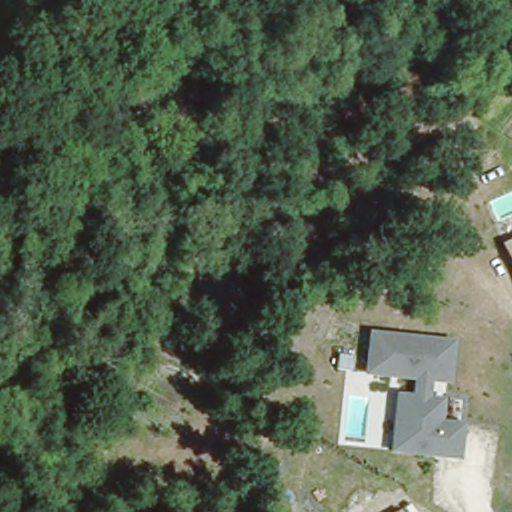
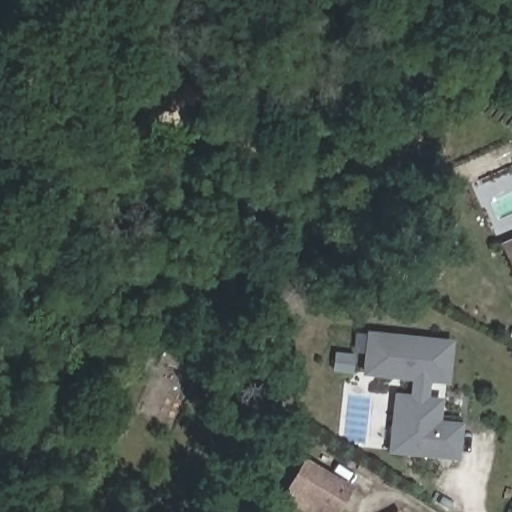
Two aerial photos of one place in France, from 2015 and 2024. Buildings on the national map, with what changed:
unchanged [(502,244),(512,239),(512,268),(502,244)]
unchanged [(451,385),(432,383),(430,396),(445,398),(443,420),(464,422),(460,461),(388,454),(394,394),(413,396),(415,381),(362,376),(367,331),(455,340),(451,385)]
new [(338,512),(304,512),(279,498),(286,487),(299,495),(317,465),(352,488),(338,512)]

